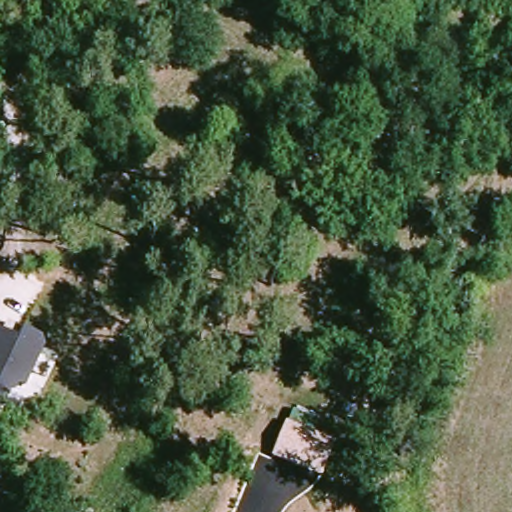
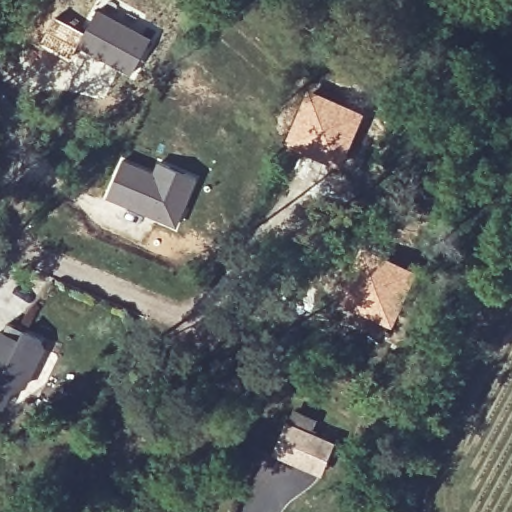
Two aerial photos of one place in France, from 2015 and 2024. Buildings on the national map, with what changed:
new [(84,31),(96,8),(152,38),(129,79),(75,51),(84,31)]
new [(53,15),(84,31),(75,51),(70,60),(38,43),(53,15)]
new [(306,87),(365,111),(338,168),(282,143),(306,87)]
new [(118,159),(150,172),(155,159),(191,173),(172,223),(103,195),(118,159)]
new [(352,239),(418,269),(392,329),(327,304),(352,239)]
unchanged [(49,339),(14,411),(0,404),(0,319),(1,317),(49,339)]
unchanged [(335,438),(320,476),(270,454),(284,419),(335,438)]

